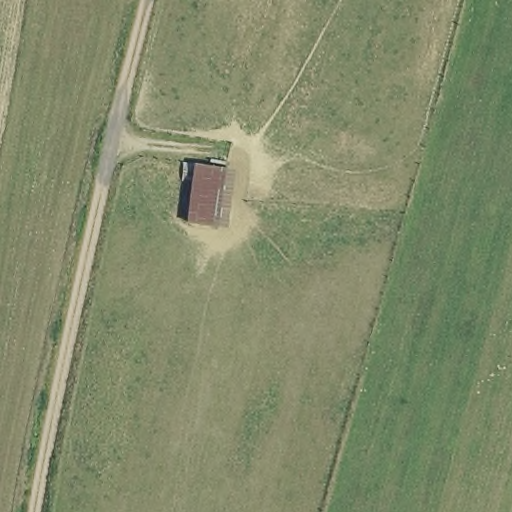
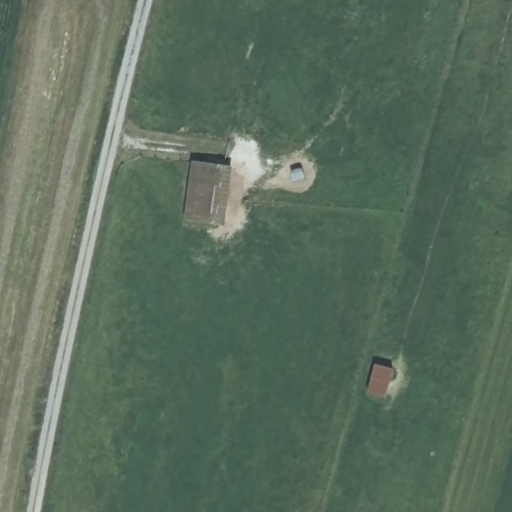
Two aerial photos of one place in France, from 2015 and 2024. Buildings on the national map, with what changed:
unchanged [(227,164),(221,225),(180,220),(189,160),(227,164)]

